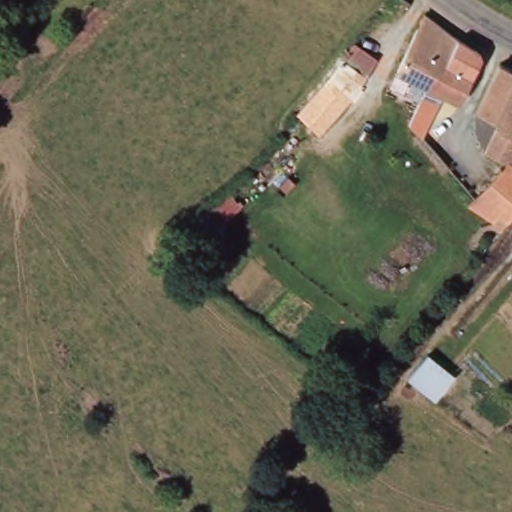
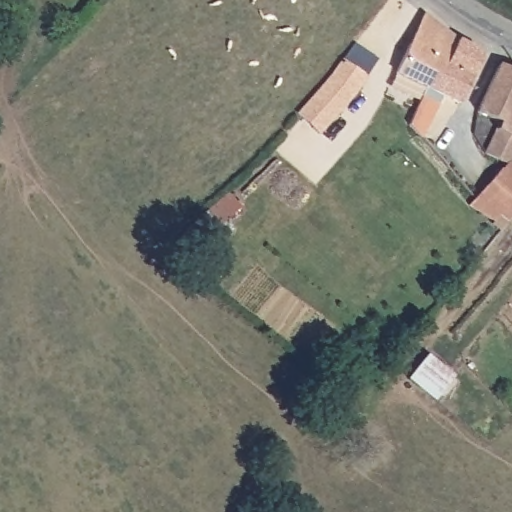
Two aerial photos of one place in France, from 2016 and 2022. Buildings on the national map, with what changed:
unchanged [(458,34),(454,39),(425,82),(396,68),(424,9),(458,34)]
unchanged [(478,46),(480,53),(458,98),(442,90),(421,132),(408,120),(425,82),(454,39),(458,34),(478,46)]
unchanged [(376,60),(354,93),(318,134),(296,113),(353,44),(376,60)]
unchanged [(512,158),(511,159),(507,156),(505,159),(484,148),(495,124),(497,117),(476,106),(499,59),(512,64),(512,158)]
unchanged [(497,209),(493,216),(468,200),(473,194),(500,163),(501,164),(505,159),(507,156),(511,159),(512,160),(512,211),(507,217),(497,209)]
unchanged [(426,352),(453,373),(432,399),(407,378),(426,352)]

